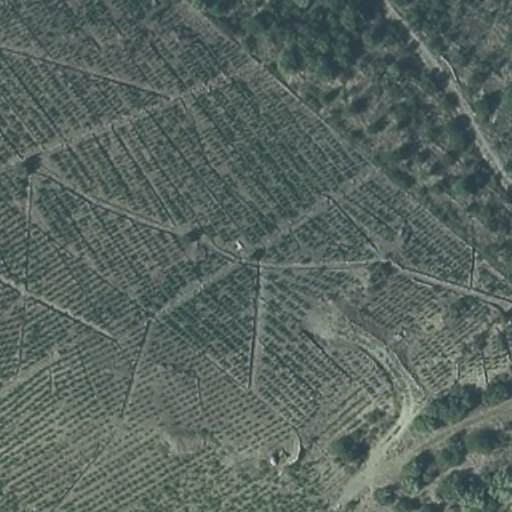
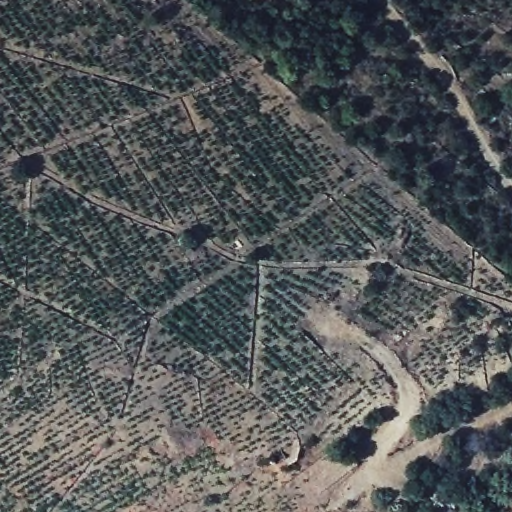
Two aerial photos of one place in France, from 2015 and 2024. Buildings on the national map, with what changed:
[]

